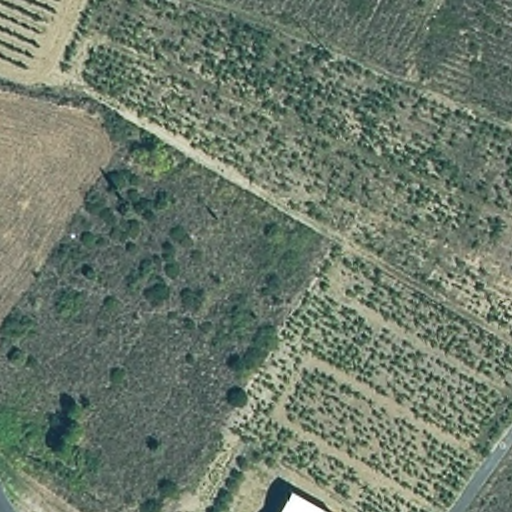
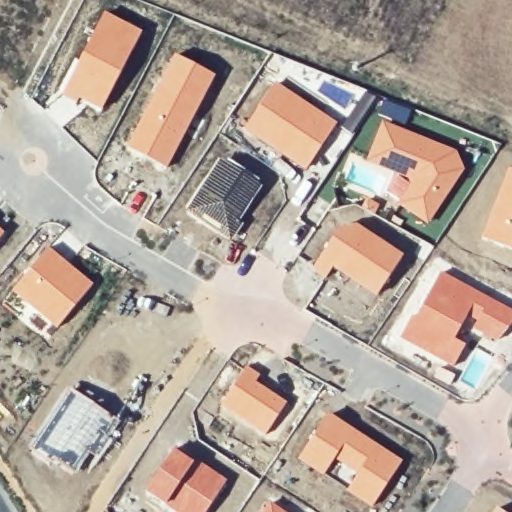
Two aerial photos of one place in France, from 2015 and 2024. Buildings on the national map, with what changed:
new [(105,11),(142,31),(101,111),(80,101),(79,105),(60,94),(105,11)]
new [(176,53),(215,76),(167,168),(125,146),(176,53)]
new [(275,81),(339,123),(307,170),(243,128),(275,81)]
new [(382,121),(388,123),(390,119),(378,114),(385,99),(412,111),(402,128),(456,150),(465,170),(428,224),(385,191),(395,172),(365,160),(382,121)]
new [(220,155),(265,184),(240,222),(244,225),(232,243),(183,211),(220,155)]
new [(509,166),(512,167),(512,249),(480,236),(509,166)]
new [(339,228),(342,226),(353,223),(404,256),(377,297),(334,268),(325,279),(310,268),(339,228)]
new [(0,238),(0,226),(6,232),(0,238)]
new [(50,245),(95,284),(57,328),(12,290),(50,245)]
new [(415,314),(441,270),(512,310),(512,323),(497,343),(472,327),(475,322),(467,317),(455,338),(465,344),(453,367),(398,338),(415,314)]
new [(246,364),(261,374),(257,381),(288,402),(265,435),(219,403),(246,364)]
new [(71,387),(117,419),(75,475),(30,448),(71,387)]
new [(328,410),(403,461),(372,507),(345,489),(355,475),(335,460),(324,476),(297,458),(328,410)]
new [(175,447),(196,461),(165,505),(145,491),(175,447)]
new [(227,480),(206,512),(175,512),(165,505),(196,461),(227,480)]
demolished [(331,512),(281,512),(293,491),(331,512)]
new [(287,512),(260,512),(269,499),(287,512)]
new [(502,512),(491,512),(494,507),(502,512)]

